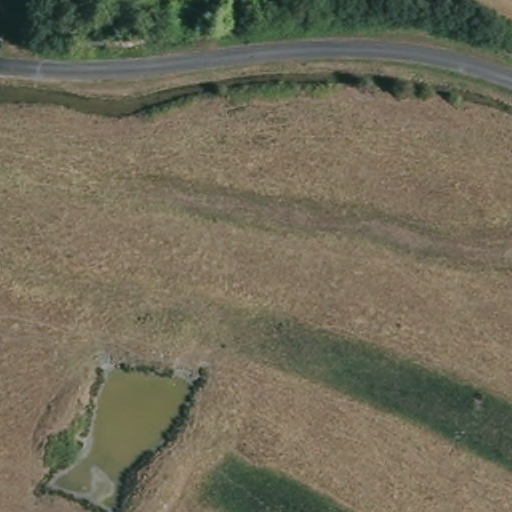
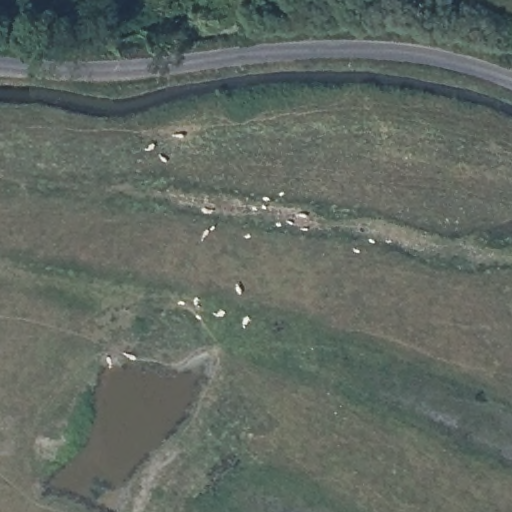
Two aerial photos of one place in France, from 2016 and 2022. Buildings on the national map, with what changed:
[]

